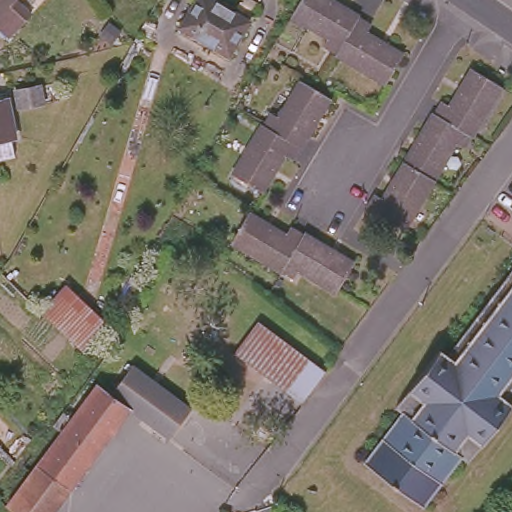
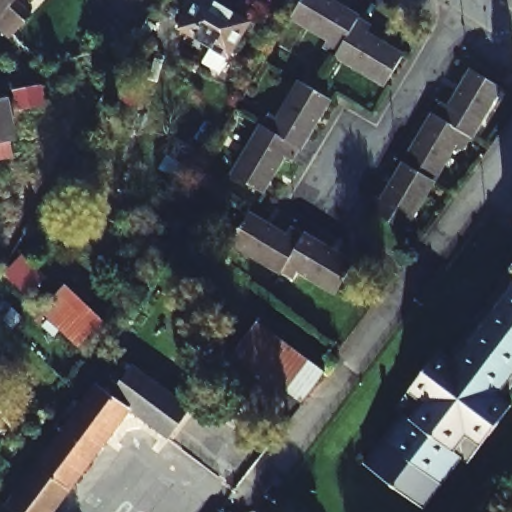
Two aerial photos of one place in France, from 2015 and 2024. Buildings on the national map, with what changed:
unchanged [(32,10),(11,32),(0,22),(0,0),(20,0),(32,10)]
unchanged [(245,20),(225,55),(178,27),(193,0),(209,0),(245,20)]
unchanged [(349,57),(335,49),(323,41),(328,32),(293,11),(299,0),(338,0),(345,5),(357,11),(371,20),(367,27),(403,49),(384,80),(349,57)]
unchanged [(429,117),(437,104),(446,110),(468,73),(496,91),(474,129),(467,141),(459,154),(451,149),(428,185),(399,167),(421,130),(429,117)]
unchanged [(250,137),(257,124),(265,110),(275,116),(297,80),(310,88),(323,96),(302,132),(294,146),(287,159),(278,154),(257,190),(229,172),(250,137)]
unchanged [(44,104),(19,110),(16,92),(41,87),(44,104)]
unchanged [(6,99),(13,139),(0,141),(0,100),(6,99)]
unchanged [(399,167),(428,185),(407,221),(399,233),(368,213),(363,210),(370,198),(375,201),(377,202),(399,167)]
unchanged [(295,266),(289,277),(277,270),(264,262),(227,239),(243,211),(281,235),(286,225),(299,233),(311,240),(348,263),(332,290),(295,266)]
unchanged [(512,261),(512,263),(511,262),(512,261)]
unchanged [(510,398),(466,455),(459,450),(420,501),(362,457),(401,406),(395,401),(438,343),(447,350),(512,265),(512,380),(503,393),(510,398)]
unchanged [(110,323),(82,347),(80,345),(42,310),(66,284),(104,318),(110,323)]
unchanged [(323,370),(300,401),(233,350),(256,320),(323,370)]
unchanged [(129,411),(110,396),(132,368),(192,412),(171,441),(170,443),(148,427),(149,425),(134,415),(133,416),(128,412),(129,411)]
unchanged [(15,512),(5,503),(95,385),(110,396),(129,411),(128,412),(53,512),(15,512)]

